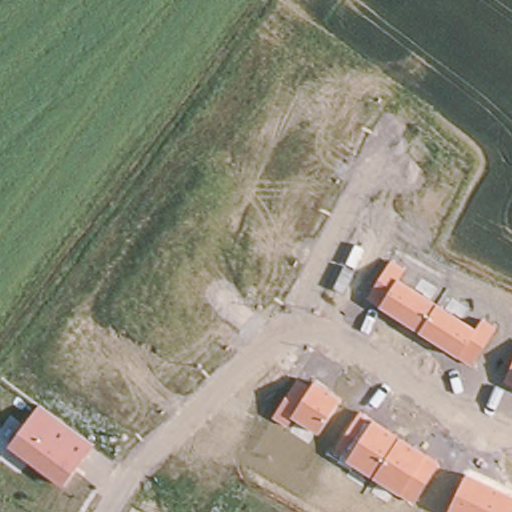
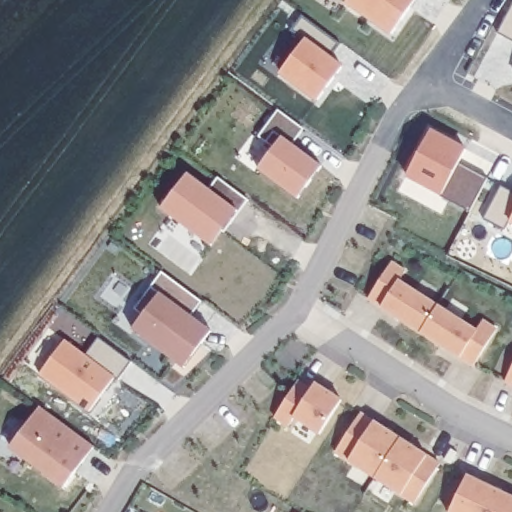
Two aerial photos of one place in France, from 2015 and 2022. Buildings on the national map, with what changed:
new [(344,2),(345,0),(415,0),(390,34),(344,2)]
new [(281,73),(305,41),(290,30),(301,16),(338,44),(328,58),(342,68),(318,99),(281,73)]
new [(255,167),(273,144),(260,132),(278,107),(305,127),(293,145),(321,167),(296,198),(255,167)]
new [(404,176),(430,127),(466,147),(459,160),(489,177),(470,211),(440,196),(404,176)]
new [(159,207),(187,172),(211,190),(218,179),(248,200),(226,232),(222,230),(210,246),(159,207)]
unchanged [(407,270),(399,280),(476,328),(482,320),(495,328),(471,365),(459,357),(380,307),(366,298),(391,261),(407,270)]
new [(126,328),(155,291),(148,286),(161,270),(203,300),(193,316),(214,330),(182,370),(126,328)]
new [(37,373),(63,340),(85,355),(97,337),(131,362),(117,382),(113,379),(88,411),(37,373)]
unchanged [(512,361),(512,386),(502,380),(512,361)]
unchanged [(297,381),(310,390),(315,381),(342,399),(318,433),(295,418),(287,428),(272,417),(297,381)]
unchanged [(95,445),(65,485),(11,445),(41,404),(95,445)]
unchanged [(437,464),(413,501),(336,452),(360,415),(437,464)]
unchanged [(512,512),(449,512),(467,475),(512,497),(512,512)]

